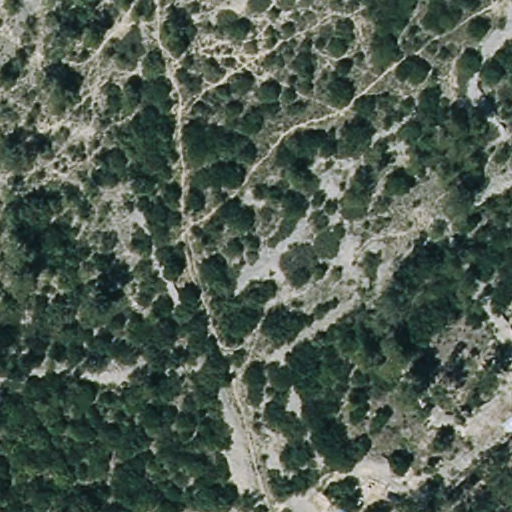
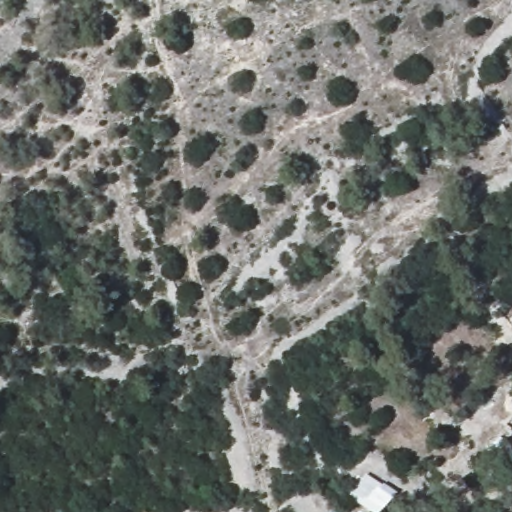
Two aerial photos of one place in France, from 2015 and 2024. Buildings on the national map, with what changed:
unchanged [(379,512),(378,512),(355,497),(364,476),(389,491),(379,512)]

